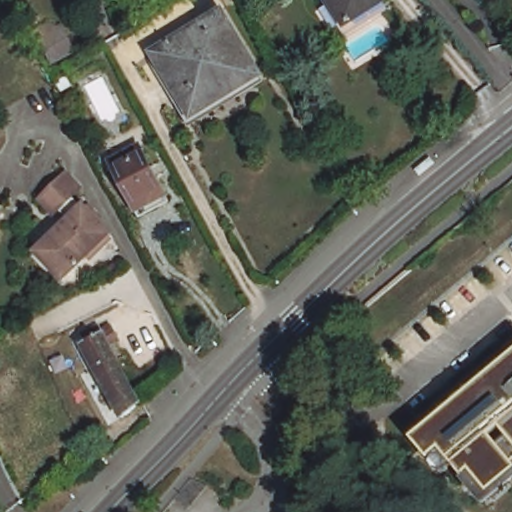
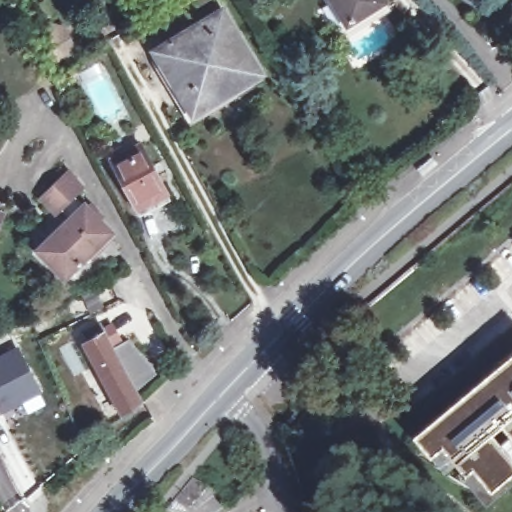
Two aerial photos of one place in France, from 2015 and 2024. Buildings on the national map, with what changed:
unchanged [(334,1),(330,3),(328,0),(381,0),(383,2),(349,24),(334,1)]
unchanged [(157,54),(226,13),(264,76),(194,116),(157,54)]
unchanged [(113,166),(145,150),(171,201),(139,217),(113,166)]
unchanged [(91,208),(93,207),(118,234),(73,278),(46,252),(76,222),(66,211),(63,214),(49,199),(74,175),(88,189),(81,197),(91,208)]
unchanged [(103,329),(144,406),(126,422),(86,348),(91,345),(88,338),(103,329)]
new [(8,333),(14,348),(18,346),(42,392),(0,413),(0,337),(8,333)]
unchanged [(476,499),(409,457),(419,449),(411,438),(449,406),(512,354),(512,481),(483,503),(476,499)]
unchanged [(207,485),(188,508),(175,497),(191,478),(207,485)]

